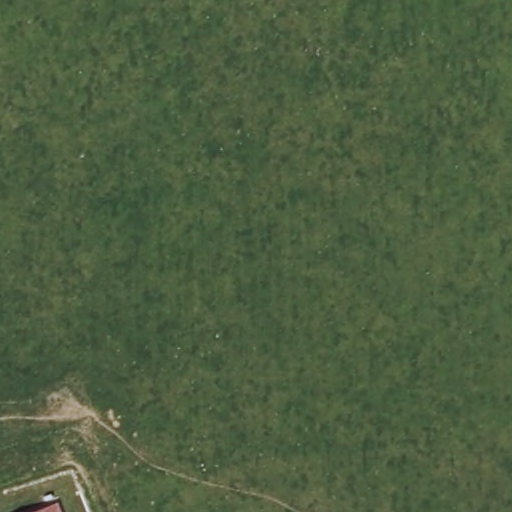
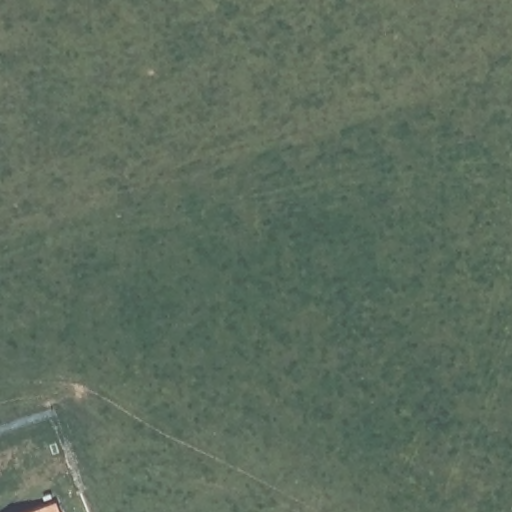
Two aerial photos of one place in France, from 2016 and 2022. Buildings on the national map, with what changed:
unchanged [(61,512),(35,512),(58,504),(61,512)]

